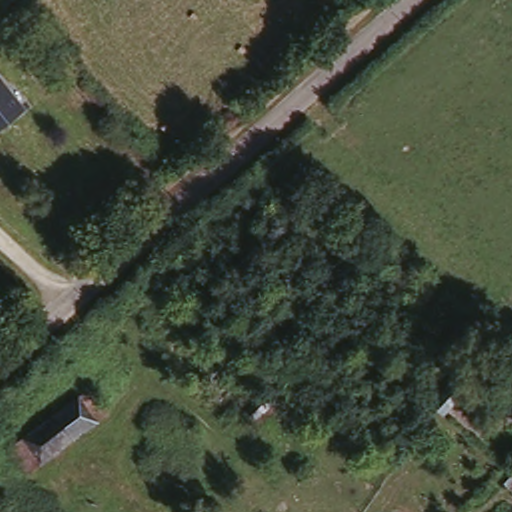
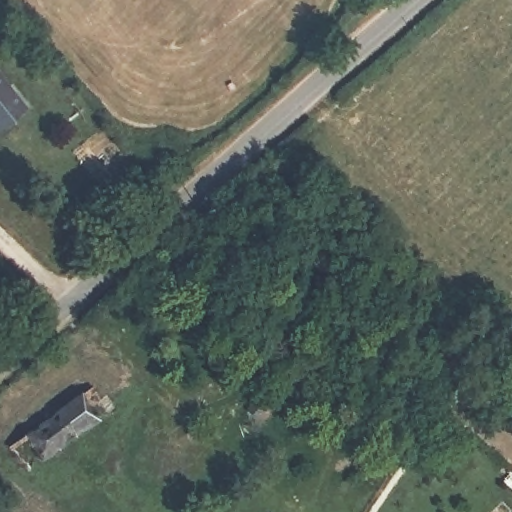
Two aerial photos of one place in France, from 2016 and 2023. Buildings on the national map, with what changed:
unchanged [(0,127),(0,79),(22,111),(0,127)]
unchanged [(460,367),(472,376),(437,411),(427,401),(460,367)]
unchanged [(92,393),(110,417),(30,472),(13,449),(92,393)]

